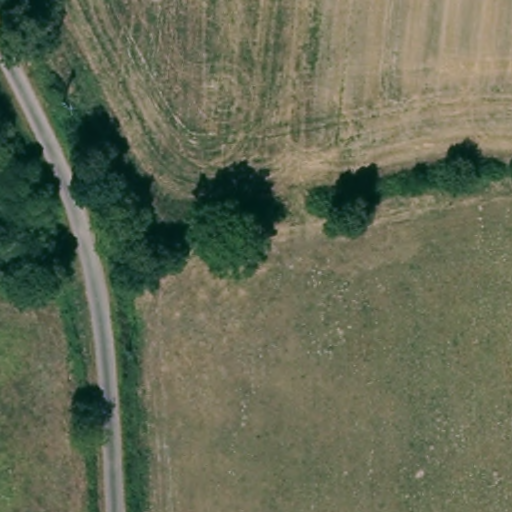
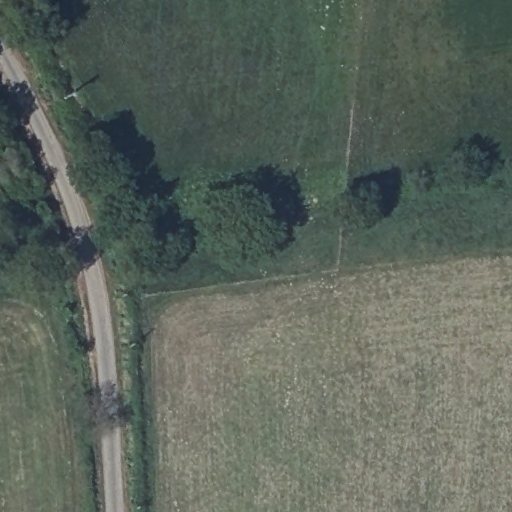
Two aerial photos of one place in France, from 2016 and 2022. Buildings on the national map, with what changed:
[]

